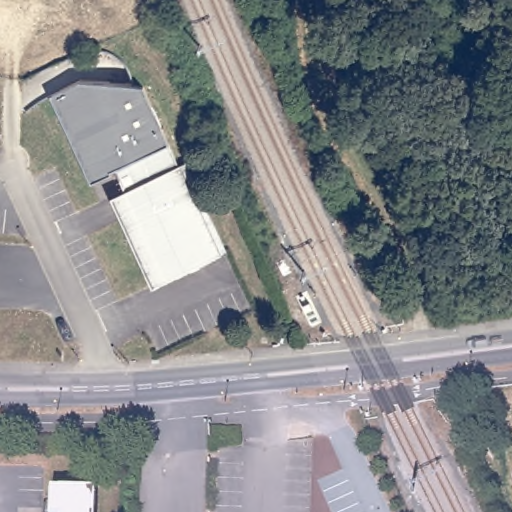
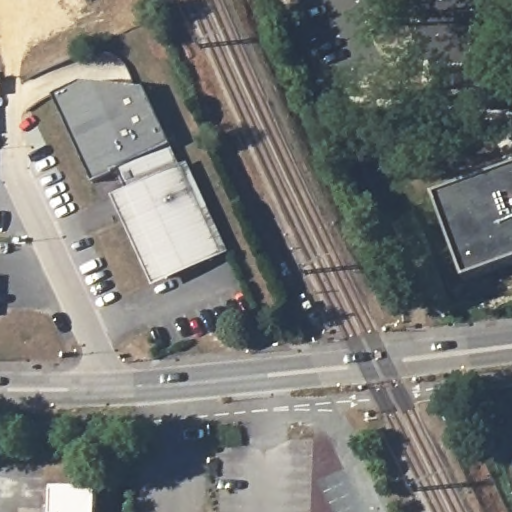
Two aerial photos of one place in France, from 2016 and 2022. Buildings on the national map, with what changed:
new [(472,32),(498,35),(492,92),(467,90),(472,32)]
unchanged [(116,173),(112,175),(112,177),(92,187),(51,98),(69,89),(80,84),(123,89),(141,91),(143,91),(145,96),(168,146),(221,257),(166,282),(125,191),(116,173)]
new [(512,166),(512,261),(463,279),(432,194),(512,166)]
unchanged [(100,512),(47,512),(47,503),(57,504),(57,487),(101,488),(100,512)]

